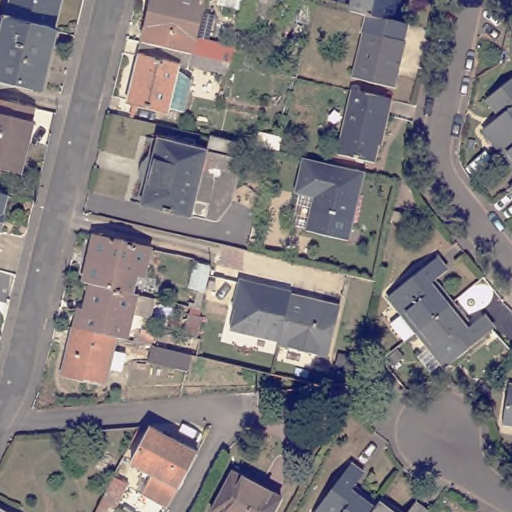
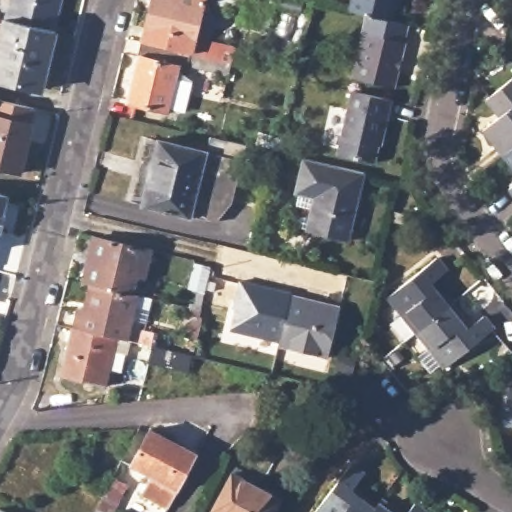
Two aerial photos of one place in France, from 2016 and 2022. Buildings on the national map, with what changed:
unchanged [(50,24),(5,13),(8,0),(56,0),(50,24)]
unchanged [(150,0),(203,0),(194,37),(233,47),(229,61),(140,40),(150,0)]
unchanged [(355,0),(400,0),(395,19),(372,14),(352,9),(355,0)]
unchanged [(0,74),(0,28),(3,13),(5,13),(50,24),(53,25),(39,83),(0,74)]
unchanged [(369,33),(367,33),(372,14),(395,19),(412,24),(408,43),(409,43),(398,89),(357,79),(369,33)]
unchanged [(226,74),(178,62),(177,67),(189,79),(181,112),(166,108),(165,112),(125,103),(140,40),(229,61),(226,74)]
unchanged [(488,127),(503,114),(490,98),(512,81),(512,150),(508,152),(488,127)]
unchanged [(384,131),(381,130),(373,162),(336,153),(351,90),(392,99),(384,131)]
unchanged [(32,121),(19,174),(0,169),(0,100),(32,108),(29,120),(32,121)]
unchanged [(230,205),(214,226),(140,209),(156,144),(205,156),(209,141),(245,149),(230,205)]
unchanged [(508,152),(512,150),(512,157),(508,152)]
unchanged [(297,193),(306,158),(324,162),(366,172),(350,240),(308,230),(314,205),(316,197),(297,193)]
unchanged [(0,208),(0,188),(4,189),(0,208)]
unchanged [(147,273),(140,273),(136,288),(143,290),(143,292),(93,280),(94,278),(88,277),(98,234),(154,247),(147,273)]
unchanged [(420,331),(408,339),(395,323),(409,310),(400,299),(397,300),(393,294),(440,255),(451,268),(434,283),(452,305),(420,331)]
unchanged [(203,289),(187,285),(193,260),(209,264),(203,289)]
unchanged [(288,291),(288,293),(276,339),(227,327),(233,306),(231,305),(238,278),(288,291)]
unchanged [(131,339),(120,336),(75,326),(80,306),(87,307),(93,280),(143,292),(131,339)]
unchanged [(337,306),(324,356),(275,344),(276,339),(288,293),(337,306)]
unchanged [(470,327),(487,315),(497,327),(447,366),(443,360),(445,357),(437,346),(434,348),(420,331),(452,305),(470,327)]
unchanged [(180,335),(186,313),(196,314),(199,315),(193,339),(180,335)]
unchanged [(109,384),(64,374),(75,326),(120,336),(117,350),(130,352),(125,372),(112,368),(109,384)]
unchanged [(187,370),(147,361),(150,345),(189,354),(187,370)]
unchanged [(506,426),(512,394),(512,427),(506,426)]
unchanged [(146,492),(154,475),(132,463),(152,426),(202,452),(172,507),(146,492)]
unchanged [(368,474),(359,486),(381,502),(374,512),(317,512),(353,464),(368,474)]
unchanged [(279,497),(272,512),(211,512),(210,511),(230,472),(279,497)]
unchanged [(120,512),(100,512),(116,480),(132,489),(120,512)]
unchanged [(408,512),(374,512),(381,502),(386,497),(408,512)]
unchanged [(433,510),(432,512),(409,512),(419,500),(433,510)]

